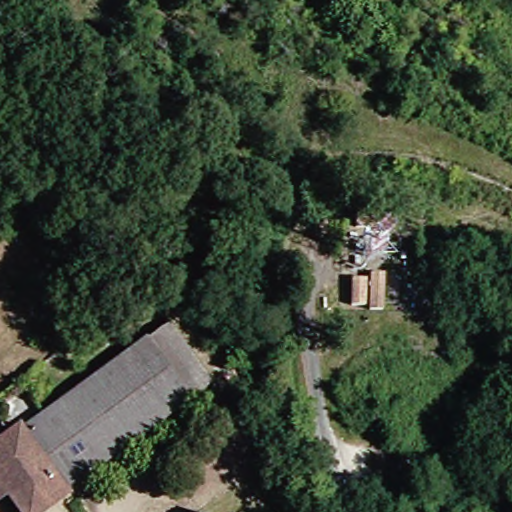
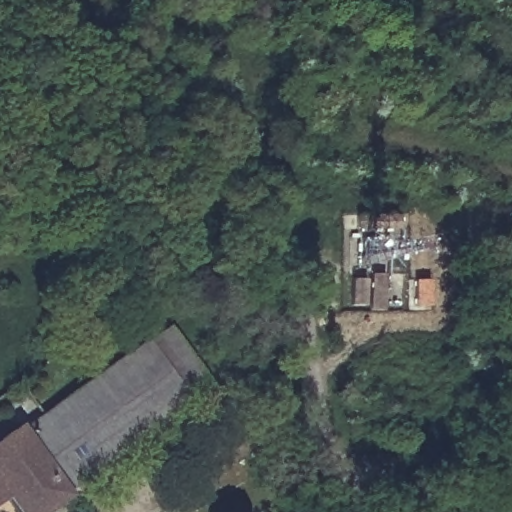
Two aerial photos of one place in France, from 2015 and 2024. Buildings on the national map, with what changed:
unchanged [(364,237),(366,224),(405,227),(405,241),(364,237)]
unchanged [(375,282),(387,283),(383,321),(372,319),(375,282)]
unchanged [(357,286),(369,287),(367,313),(354,312),(357,286)]
unchanged [(166,333),(181,348),(210,388),(43,512),(17,512),(7,498),(0,488),(0,440),(1,439),(12,431),(15,437),(166,333)]
unchanged [(0,504),(0,488),(7,498),(0,504)]

